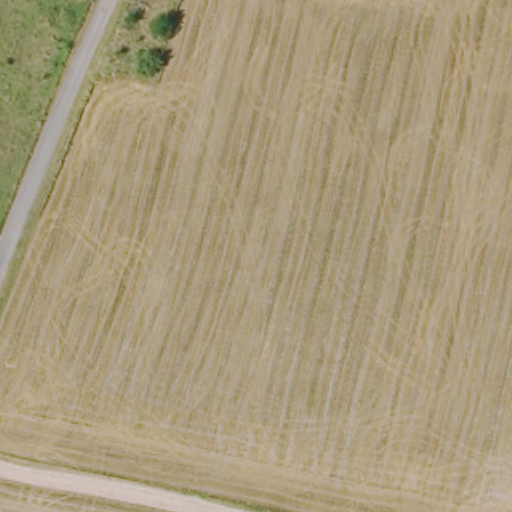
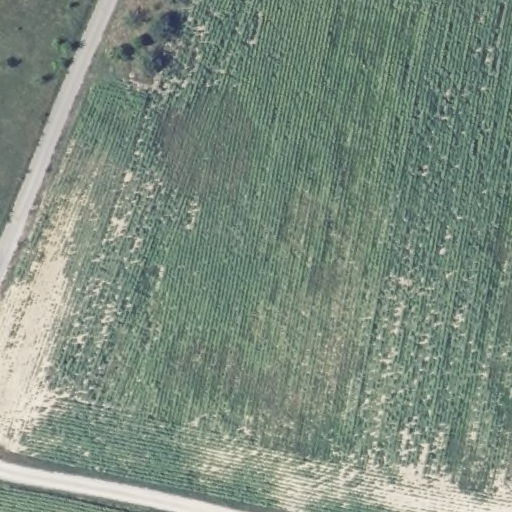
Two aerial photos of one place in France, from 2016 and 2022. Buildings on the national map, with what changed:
[]

